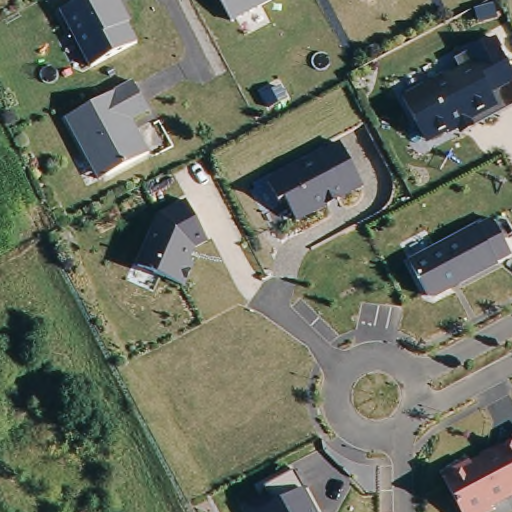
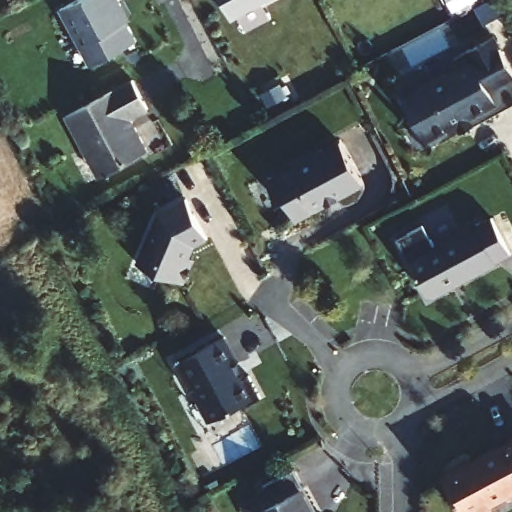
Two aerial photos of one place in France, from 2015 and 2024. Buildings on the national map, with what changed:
unchanged [(87,71),(57,15),(85,0),(112,0),(118,11),(125,24),(121,26),(133,47),(87,71)]
unchanged [(227,25),(214,0),(275,0),(227,25)]
unchanged [(512,104),(473,123),(475,127),(458,134),(455,129),(425,142),(402,97),(457,67),(453,58),(494,38),(512,76),(512,104)]
unchanged [(80,154),(62,122),(130,86),(145,115),(126,124),(145,158),(102,180),(95,184),(80,154)]
unchanged [(361,187),(293,224),(267,181),(340,142),(361,187)]
unchanged [(204,237),(193,243),(183,284),(137,269),(158,211),(185,197),(204,237)]
unchanged [(511,254),(497,262),(499,265),(428,300),(405,258),(489,215),(511,254)]
new [(225,336),(258,402),(206,426),(177,363),(225,336)]
unchanged [(459,512),(442,477),(512,440),(512,502),(493,512),(459,512)]
unchanged [(304,491),(308,489),(320,512),(255,512),(268,504),(261,488),(292,471),(304,491)]

